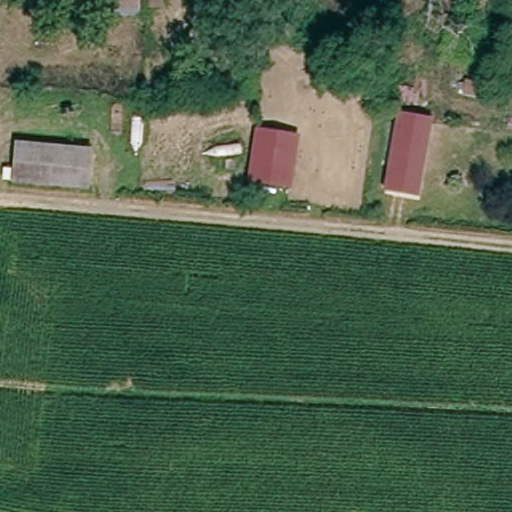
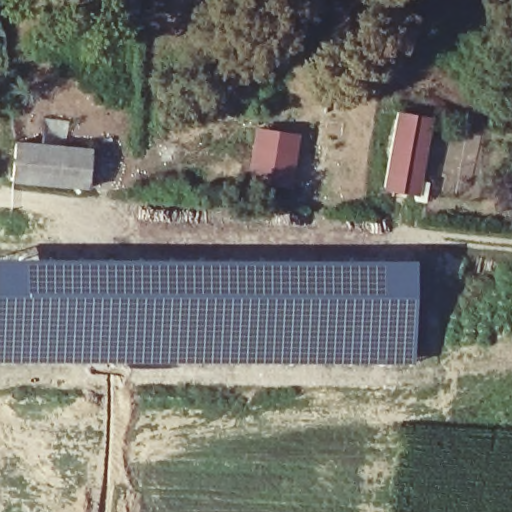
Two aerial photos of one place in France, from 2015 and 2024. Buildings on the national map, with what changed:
unchanged [(430,119),(421,195),(389,191),(398,115),(430,119)]
unchanged [(250,129),(298,137),(290,190),(242,182),(250,129)]
unchanged [(88,187),(14,184),(15,146),(90,150),(88,187)]
demolished [(62,212),(67,249),(0,258),(0,220),(62,212)]
new [(414,260),(414,363),(0,362),(0,260),(414,260)]

